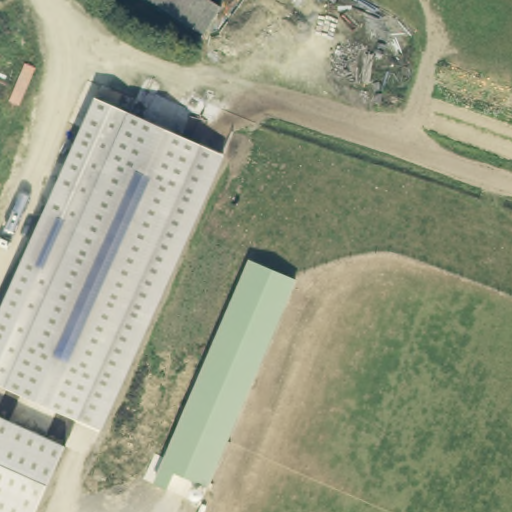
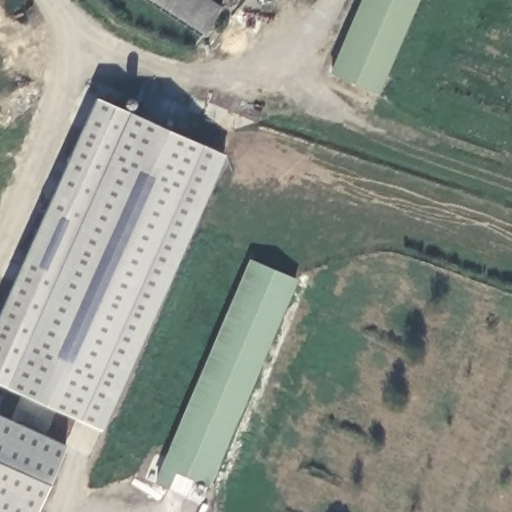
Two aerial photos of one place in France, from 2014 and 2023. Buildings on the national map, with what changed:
unchanged [(199,32),(151,0),(196,0),(213,11),(199,32)]
new [(328,73),(360,0),(419,0),(377,94),(328,73)]
unchanged [(227,155),(100,429),(0,384),(0,310),(94,99),(227,155)]
unchanged [(248,259),(299,280),(211,488),(174,473),(167,487),(153,482),(248,259)]
unchanged [(0,417),(64,444),(36,512),(0,512),(0,417)]

